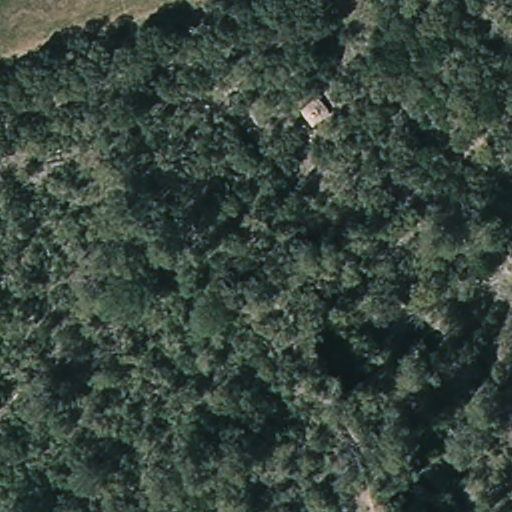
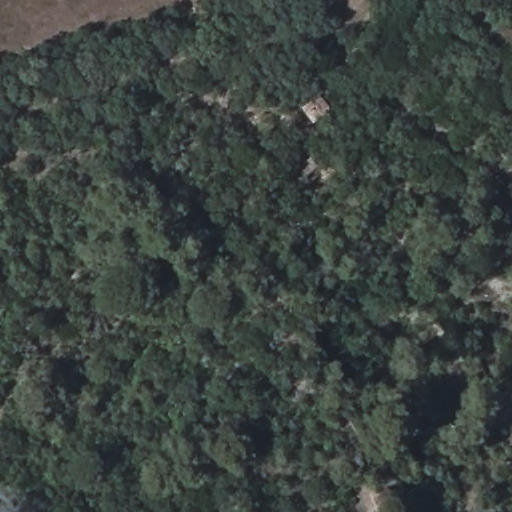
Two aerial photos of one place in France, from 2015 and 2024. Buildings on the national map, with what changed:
unchanged [(319,94),(333,112),(315,125),(301,106),(319,94)]

